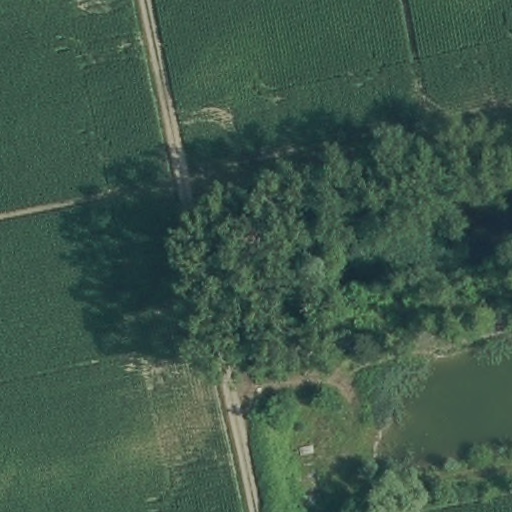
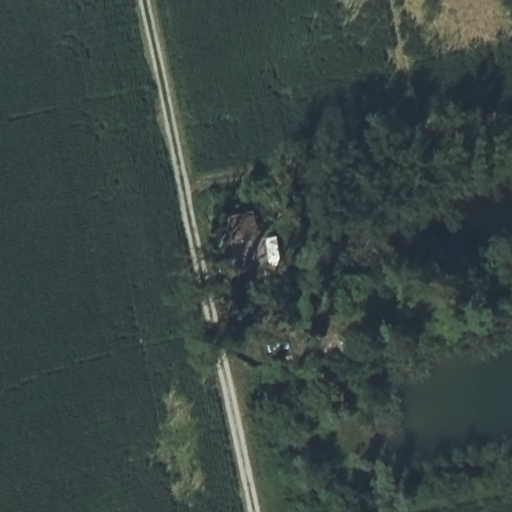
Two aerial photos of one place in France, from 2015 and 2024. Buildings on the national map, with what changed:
unchanged [(307,509),(300,471),(323,464),(329,487),(330,508),(307,509)]

